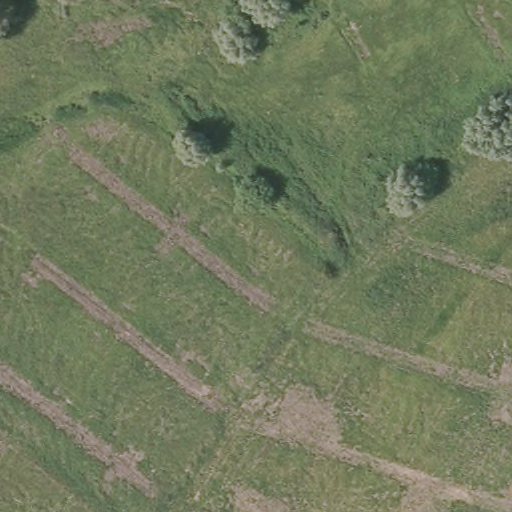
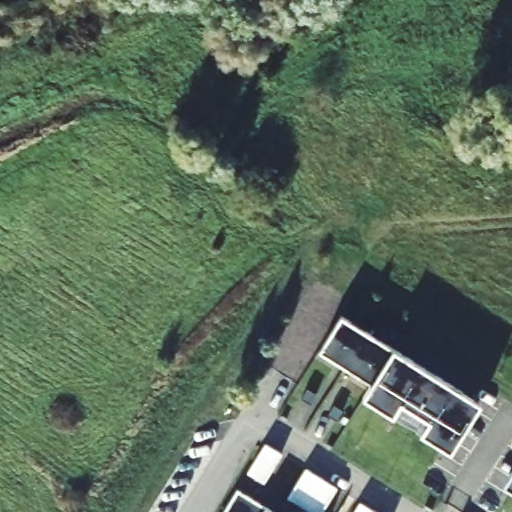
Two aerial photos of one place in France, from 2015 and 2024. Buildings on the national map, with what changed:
new [(342,316),(369,333),(347,369),(319,352),(342,316)]
new [(369,333),(394,349),(372,385),(347,369),(369,333)]
new [(372,385),(394,349),(464,392),(442,427),(432,421),(431,422),(402,404),(394,417),(364,398),(372,385)]
new [(394,417),(402,404),(431,422),(432,421),(442,427),(464,392),(482,403),(451,453),(432,441),(421,434),(394,417)]
new [(266,445),(282,455),(264,484),(248,474),(266,445)]
new [(323,512),(310,512),(304,509),(289,499),(307,470),(322,480),(337,489),(323,512)]
new [(503,485),(512,471),(512,490),(503,485)]
new [(238,490),(269,509),(267,512),(224,512),(238,490)]
new [(360,504),(374,512),(355,512),(360,504)]
new [(269,509),(273,512),(267,512),(269,509)]

